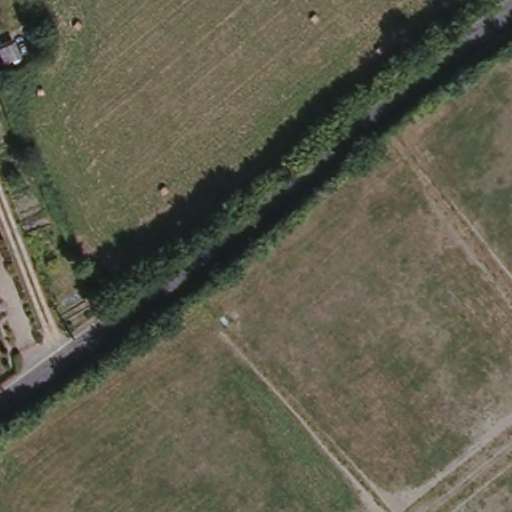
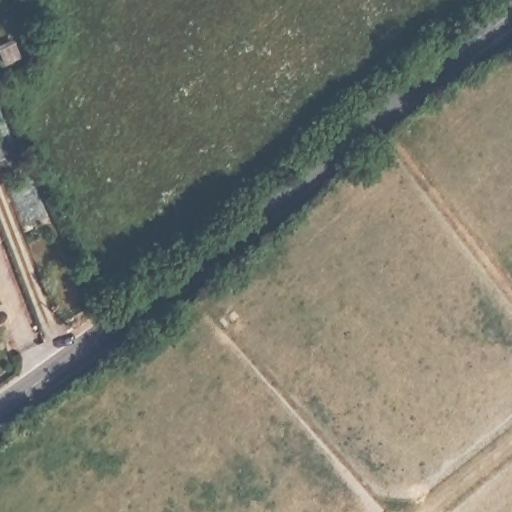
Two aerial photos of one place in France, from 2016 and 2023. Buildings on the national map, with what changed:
unchanged [(17,21),(39,58),(0,80),(0,32),(17,21)]

